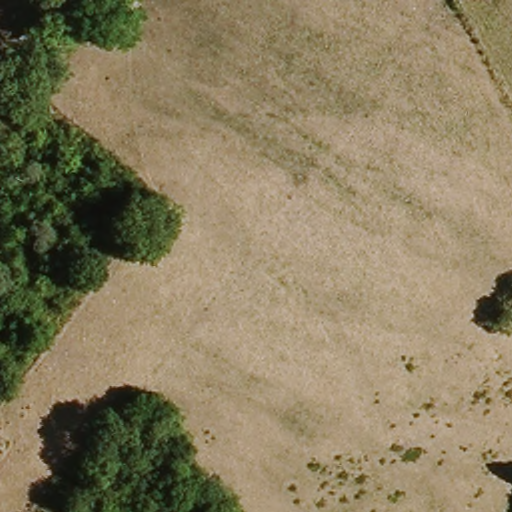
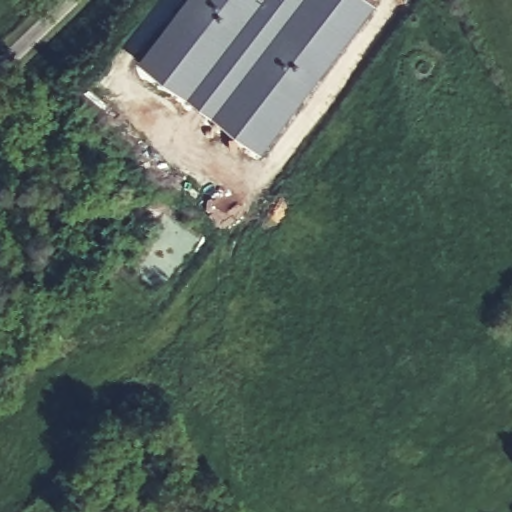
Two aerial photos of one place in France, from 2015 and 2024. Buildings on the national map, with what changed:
new [(263,150),(142,56),(186,0),(368,0),(375,5),(263,150)]

